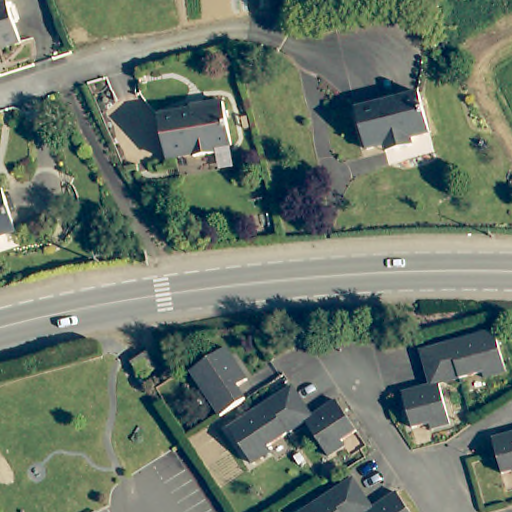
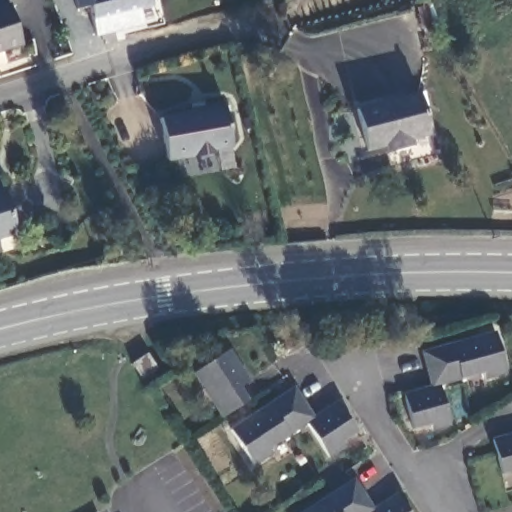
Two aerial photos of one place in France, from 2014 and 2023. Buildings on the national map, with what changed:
unchanged [(0,55),(0,0),(9,0),(24,48),(0,55)]
new [(151,6),(137,10),(142,25),(95,37),(88,9),(76,12),(73,0),(149,0),(151,6)]
unchanged [(383,145),(365,150),(354,109),(418,92),(428,133),(410,138),(411,146),(394,150),(384,153),(383,145)]
unchanged [(230,140),(214,144),(214,149),(193,154),(191,151),(165,155),(157,113),(201,106),(200,103),(222,99),(230,140)]
unchanged [(0,237),(0,191),(6,190),(19,232),(0,237)]
unchanged [(501,370),(479,375),(478,371),(436,381),(447,422),(428,427),(427,422),(409,426),(400,391),(428,384),(427,380),(418,349),(490,330),(501,370)]
demolished [(154,368),(139,377),(127,359),(141,350),(154,368)]
unchanged [(247,382),(238,388),(246,401),(220,418),(211,405),(217,400),(208,386),(202,390),(191,373),(227,352),(247,382)]
unchanged [(311,416),(335,401),(355,431),(341,440),(344,447),(328,457),(305,422),(268,446),(272,453),(253,466),(230,430),(292,388),(311,416)]
unchanged [(498,471),(490,435),(512,429),(512,468),(498,471)]
unchanged [(375,507),(397,492),(411,512),(305,512),(353,480),(373,508),(375,507)]

